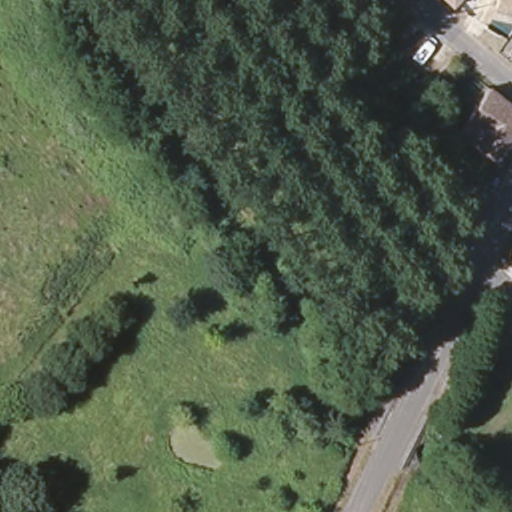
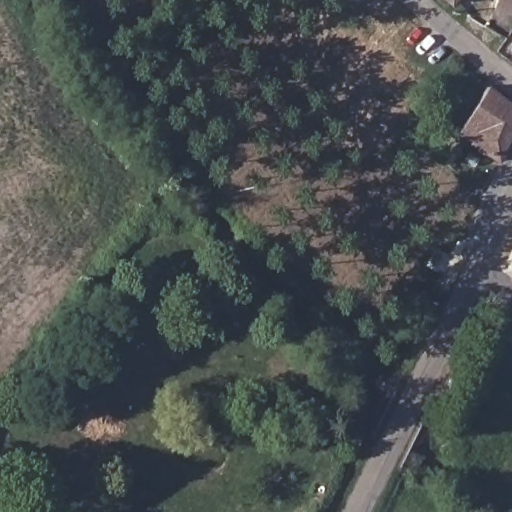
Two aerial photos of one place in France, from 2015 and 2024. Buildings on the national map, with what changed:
unchanged [(438,0),(458,0),(448,10),(438,0)]
unchanged [(500,0),(512,0),(512,18),(496,14),(500,0)]
unchanged [(512,54),(512,60),(509,58),(512,54)]
unchanged [(512,105),(512,139),(500,162),(460,132),(490,85),(512,105)]

